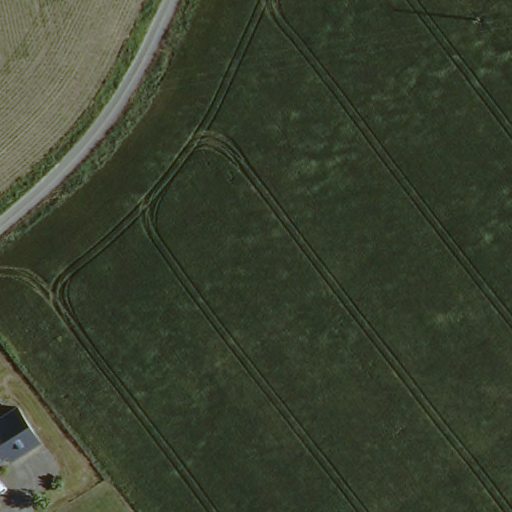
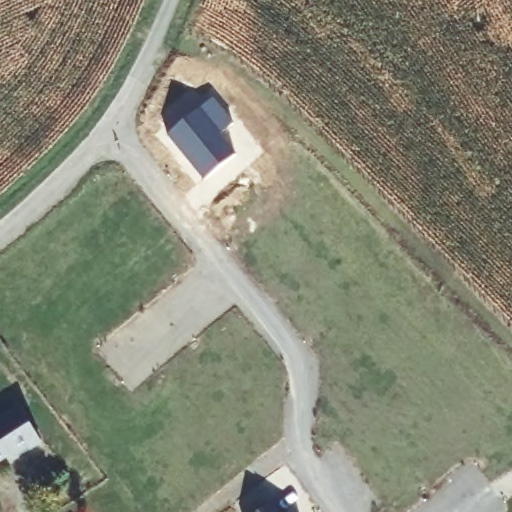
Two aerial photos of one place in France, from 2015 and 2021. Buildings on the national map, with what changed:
new [(210,95),(231,121),(217,132),(233,152),(202,177),(165,132),(210,95)]
unchanged [(37,443),(6,462),(4,457),(0,459),(0,417),(15,408),(37,443)]

